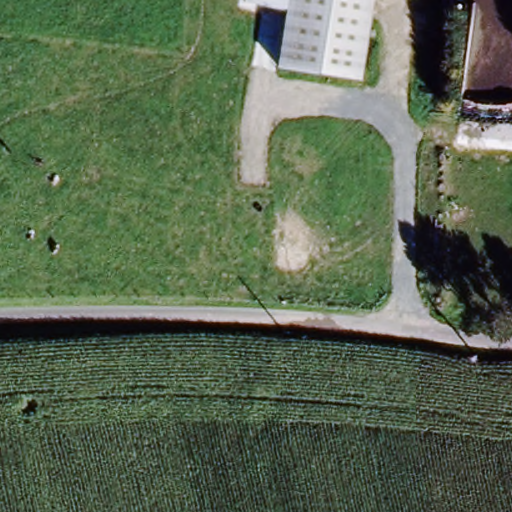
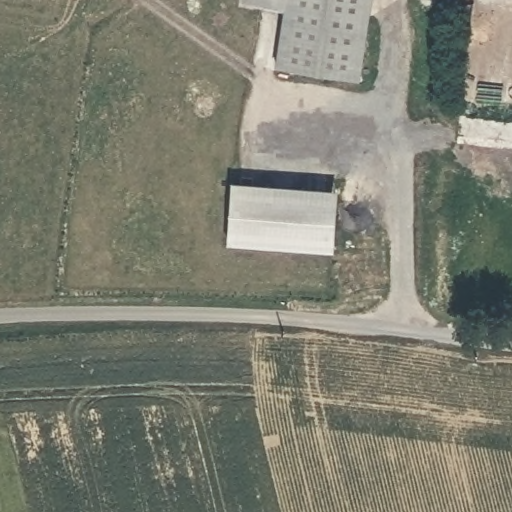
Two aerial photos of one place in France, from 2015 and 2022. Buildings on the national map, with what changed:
unchanged [(282,71),(286,10),(244,3),(244,0),(375,0),(363,83),(282,71)]
new [(340,190),(336,252),(228,244),(233,182),(340,190)]

